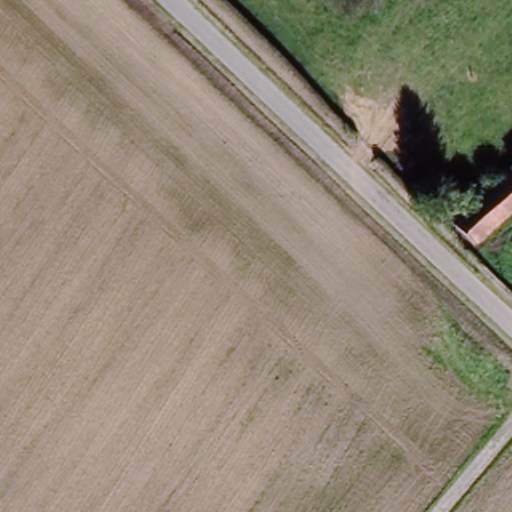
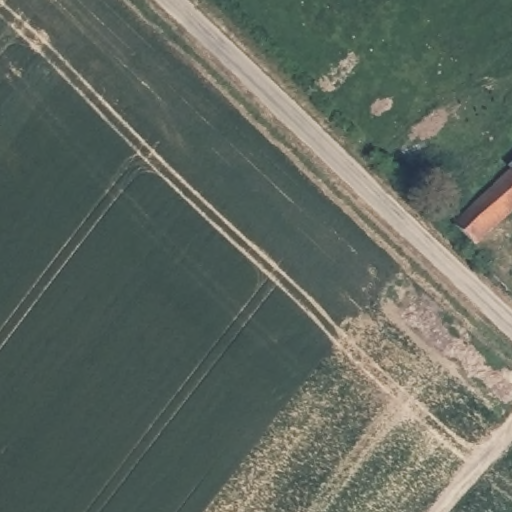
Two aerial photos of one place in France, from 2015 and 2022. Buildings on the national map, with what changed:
unchanged [(512,170),(512,201),(497,186),(512,170)]
unchanged [(449,232),(497,186),(512,201),(512,213),(470,252),(449,232)]

